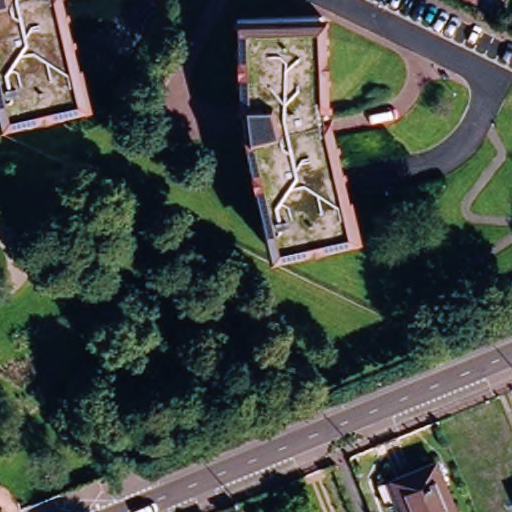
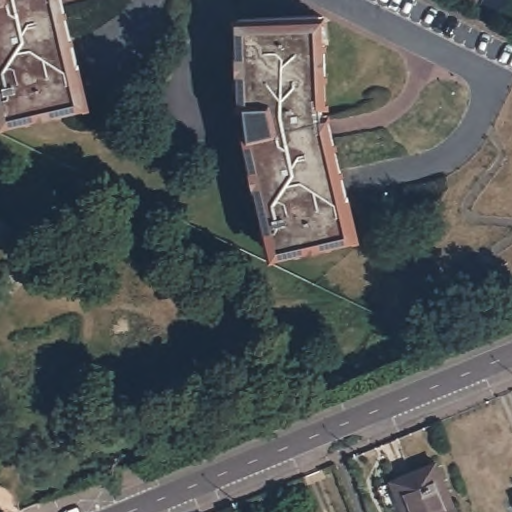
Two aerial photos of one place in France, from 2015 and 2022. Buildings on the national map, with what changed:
unchanged [(2,123),(0,112),(0,0),(61,0),(85,103),(2,123)]
unchanged [(504,0),(497,15),(489,11),(480,7),(483,0),(504,0)]
unchanged [(325,101),(320,101),(320,108),(322,116),(327,116),(355,236),(272,255),(244,134),(250,132),(246,105),(240,105),(237,20),(322,17),(325,101)]
unchanged [(456,512),(405,512),(392,480),(435,462),(456,512)]

